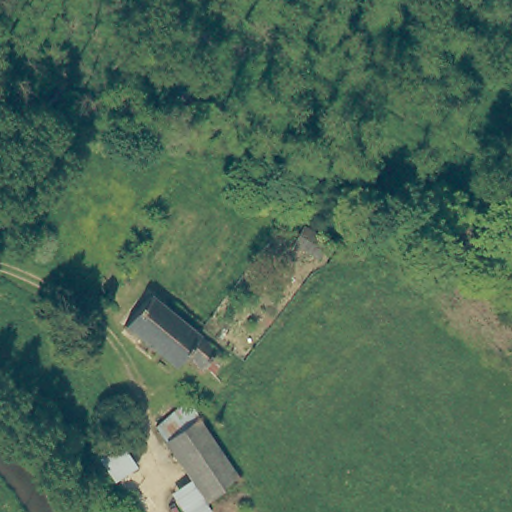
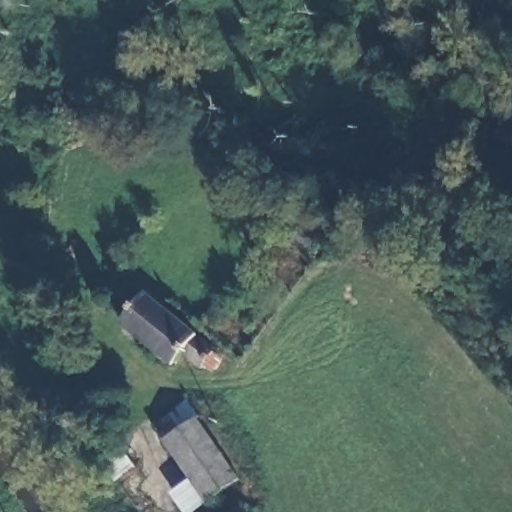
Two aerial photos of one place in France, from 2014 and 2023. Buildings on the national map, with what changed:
unchanged [(292,243),(303,226),(327,241),(317,258),(292,243)]
unchanged [(119,320),(143,289),(212,345),(209,349),(213,353),(215,357),(215,362),(210,365),(205,364),(200,361),(197,364),(180,349),(170,361),(119,320)]
unchanged [(156,421),(187,396),(200,411),(196,414),(213,435),(179,457),(156,421)]
unchanged [(173,487),(191,474),(179,457),(213,435),(240,474),(206,496),(187,509),(173,487)]
unchanged [(135,467),(116,480),(101,457),(120,444),(135,467)]

